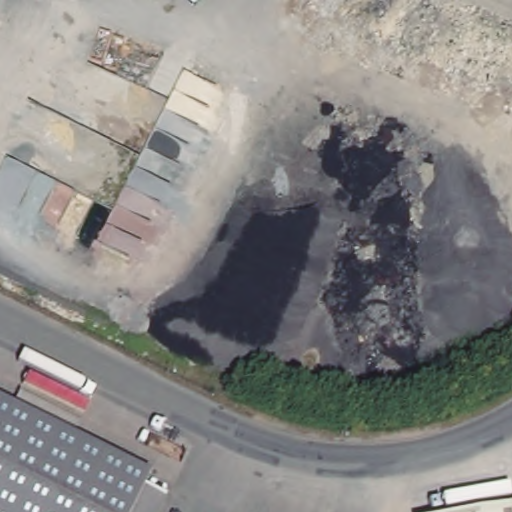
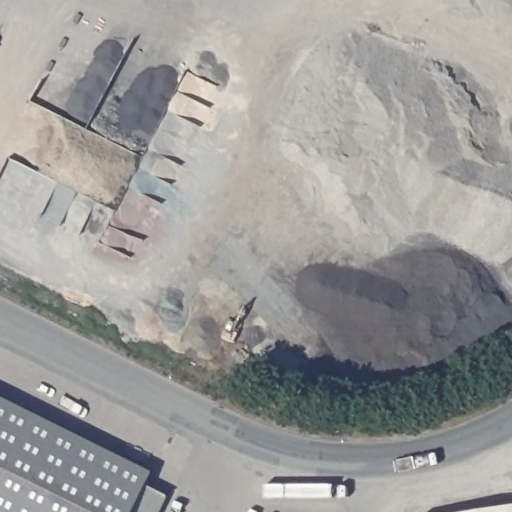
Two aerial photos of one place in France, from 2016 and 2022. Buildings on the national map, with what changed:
unchanged [(145,490),(165,500),(159,512),(0,512),(0,402),(150,479),(145,490)]
unchanged [(512,508),(512,512),(488,512),(512,508)]

